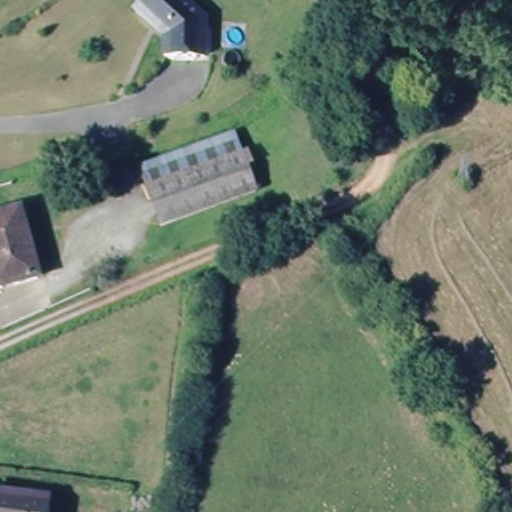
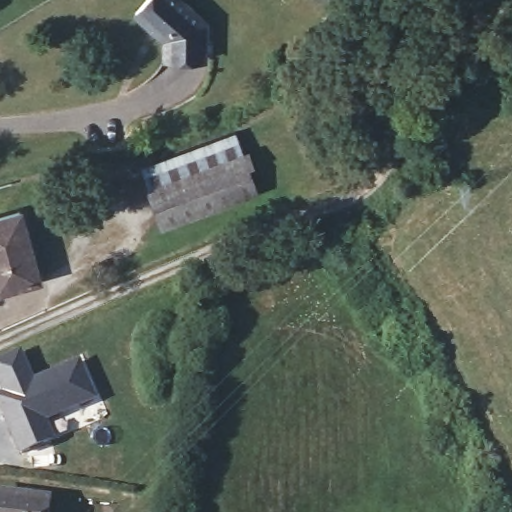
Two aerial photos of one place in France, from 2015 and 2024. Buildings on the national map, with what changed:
unchanged [(227,28),(227,57),(175,57),(175,37),(140,10),(150,0),(192,0),(227,28)]
unchanged [(238,147),(252,189),(159,221),(146,182),(238,147)]
unchanged [(40,279),(0,289),(0,219),(21,213),(40,279)]
new [(34,375),(48,369),(50,373),(82,357),(100,398),(51,422),(58,436),(19,453),(0,412),(0,360),(22,350),(34,375)]
unchanged [(52,512),(0,512),(0,494),(53,498),(52,512)]

